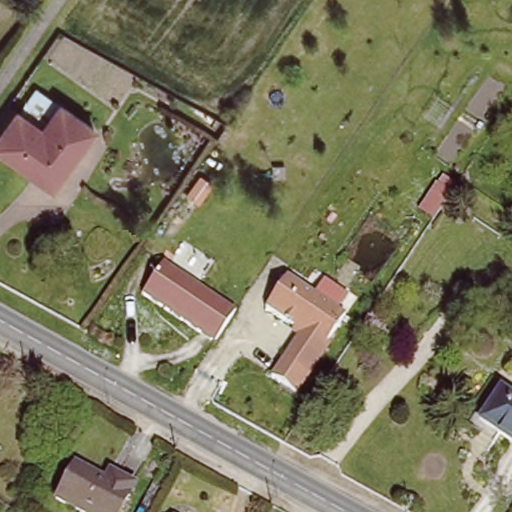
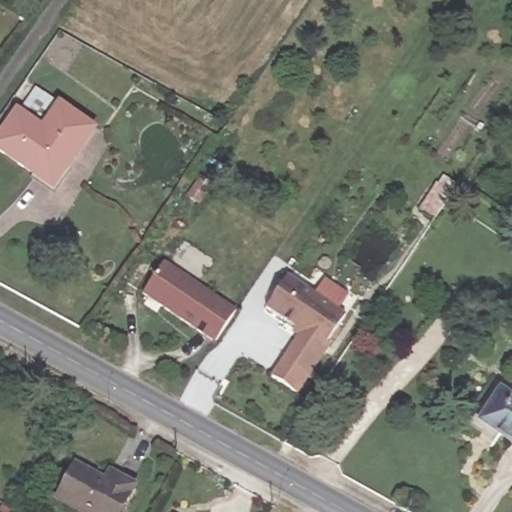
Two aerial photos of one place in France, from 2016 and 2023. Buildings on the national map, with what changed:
unchanged [(0,149),(0,127),(17,103),(25,109),(86,150),(60,190),(0,149)]
unchanged [(236,310),(215,342),(143,295),(165,263),(236,310)]
unchanged [(270,380),(284,360),(299,337),(258,311),(282,275),(344,315),(325,343),(328,346),(309,375),(295,396),(270,380)]
unchanged [(502,388),(512,395),(512,441),(480,420),(502,388)]
unchanged [(105,480),(111,469),(118,473),(135,482),(119,512),(80,512),(82,510),(57,497),(75,464),(105,480)]

